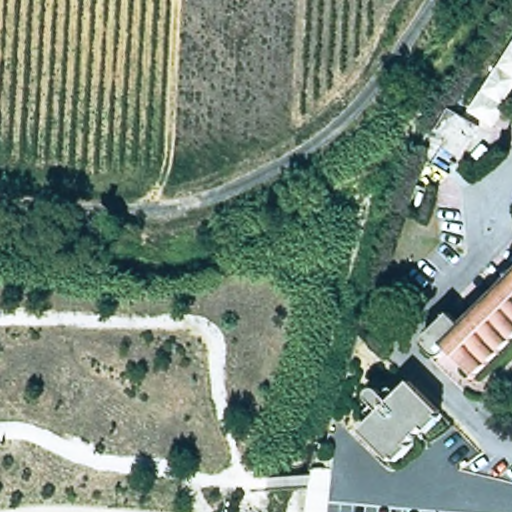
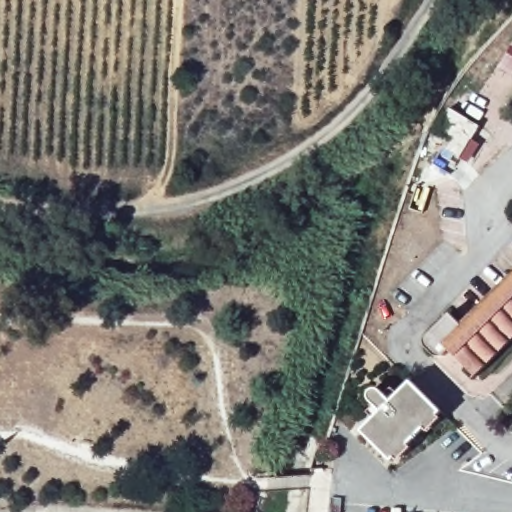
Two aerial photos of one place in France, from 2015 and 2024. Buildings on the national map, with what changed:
unchanged [(512,85),(502,99),(509,108),(496,129),(467,109),(512,38),(512,85)]
unchanged [(449,109),(479,126),(459,159),(442,148),(447,140),(434,132),(449,109)]
unchanged [(444,356),(443,357),(439,357),(438,357),(435,357),(425,347),(424,346),(424,345),(424,343),(424,341),(424,338),(449,312),(461,325),(512,274),(512,340),(475,377),(449,351),(445,356),(444,356)]
unchanged [(391,462),(360,431),(379,411),(369,400),(368,399),(368,397),(368,396),(368,393),(369,392),(370,391),(371,390),(374,389),(376,388),(378,389),(379,390),(390,401),(410,381),(441,412),(391,462)]

